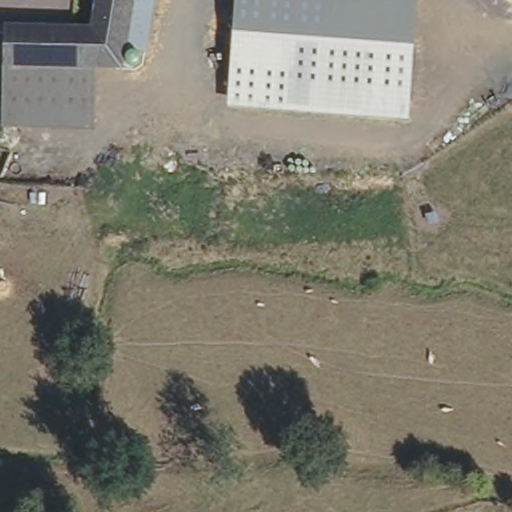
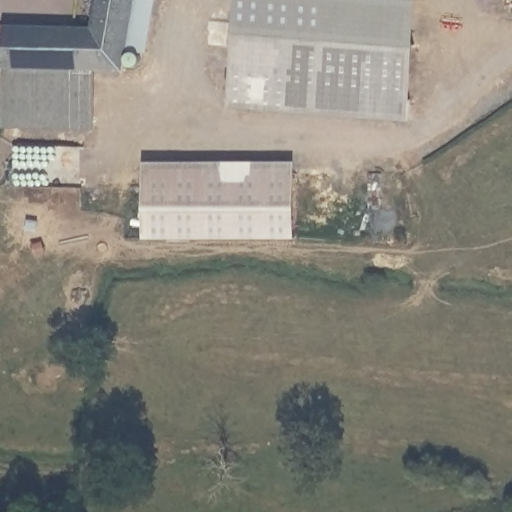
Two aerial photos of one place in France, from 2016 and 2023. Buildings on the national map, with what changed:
unchanged [(0,40),(0,19),(86,23),(88,0),(151,0),(142,51),(125,51),(121,70),(94,70),(0,65),(0,48),(0,40)]
unchanged [(234,0),(416,0),(412,46),(231,32),(234,0)]
unchanged [(412,46),(407,124),(226,107),(231,32),(412,46)]
unchanged [(94,70),(92,131),(0,129),(0,65),(94,70)]
new [(80,150),(80,187),(11,187),(12,147),(80,150)]
new [(142,167),(292,169),(292,245),(142,245),(142,167)]

